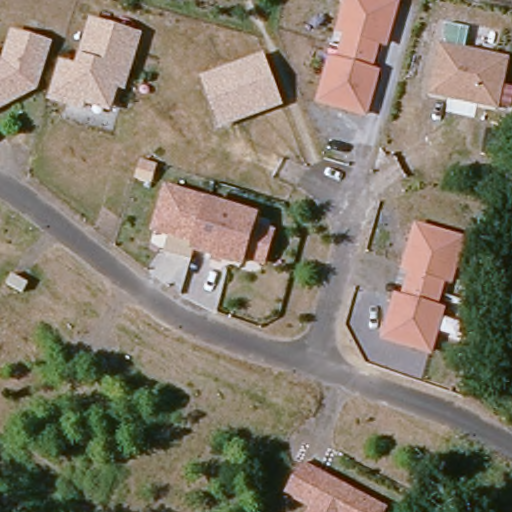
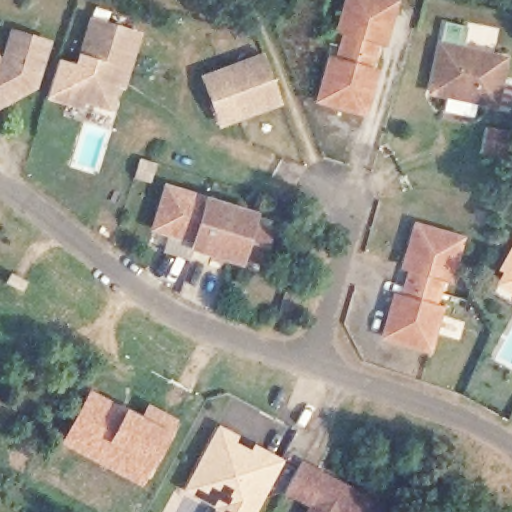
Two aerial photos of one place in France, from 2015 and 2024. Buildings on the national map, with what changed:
unchanged [(343,31),(353,0),(397,0),(402,2),(390,44),(383,42),(379,56),(347,47),(351,33),(343,31)]
unchanged [(100,104),(74,97),(73,102),(54,97),(64,61),(82,67),(96,20),(145,35),(139,54),(133,52),(122,90),(100,104)]
unchanged [(14,32),(49,42),(36,87),(0,106),(0,62),(0,63),(5,61),(14,32)]
unchanged [(494,107),(429,93),(439,46),(504,60),(494,107)]
unchanged [(379,56),(375,70),(383,72),(371,114),(324,101),(336,58),(343,60),(347,47),(379,56)]
unchanged [(221,122),(204,75),(264,53),(281,100),(257,109),(255,103),(237,110),(239,115),(221,122)]
unchanged [(156,162),(150,180),(134,176),(140,157),(156,162)]
unchanged [(158,250),(164,232),(149,228),(162,187),(184,193),(203,199),(251,214),(248,223),(266,229),(257,258),(239,253),(236,262),(188,247),(185,258),(158,250)]
unchanged [(436,351),(389,337),(401,295),(408,297),(416,270),(409,267),(421,225),(468,238),(456,281),(448,278),(441,306),(448,308),(436,351)]
new [(492,292),(505,268),(502,267),(512,250),(512,302),(510,302),(492,292)]
unchanged [(12,272),(28,281),(22,291),(7,282),(12,272)]
new [(88,387),(139,413),(146,401),(179,419),(140,487),(58,443),(88,387)]
new [(220,427),(236,436),(232,443),(251,453),(255,447),(281,461),(254,512),(227,512),(232,502),(209,490),(217,473),(200,464),(220,427)]
new [(200,464),(217,473),(209,490),(232,502),(227,512),(216,512),(219,506),(187,488),(200,464)]
unchanged [(385,512),(311,512),(313,508),(286,493),(302,464),(386,509),(385,512)]

